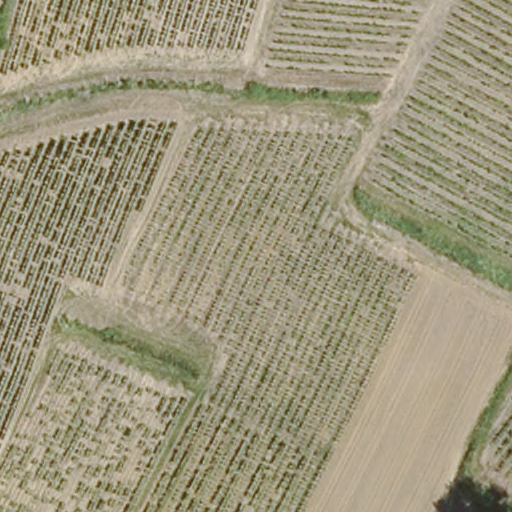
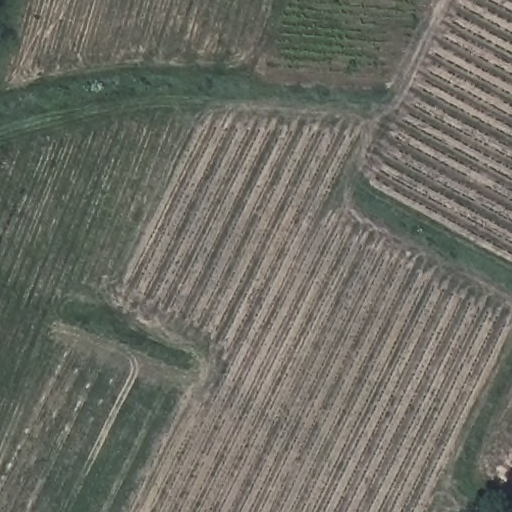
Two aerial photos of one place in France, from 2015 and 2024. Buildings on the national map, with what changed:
[]

